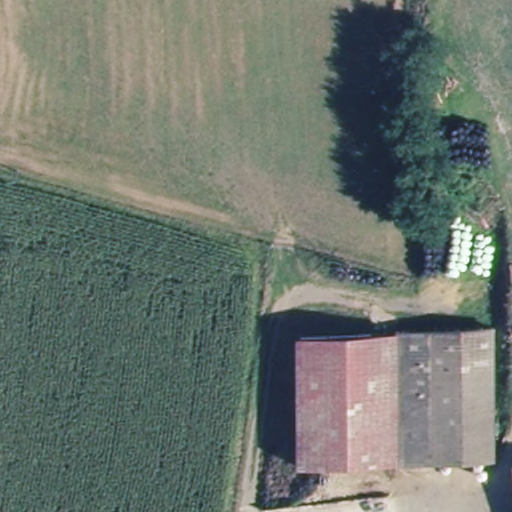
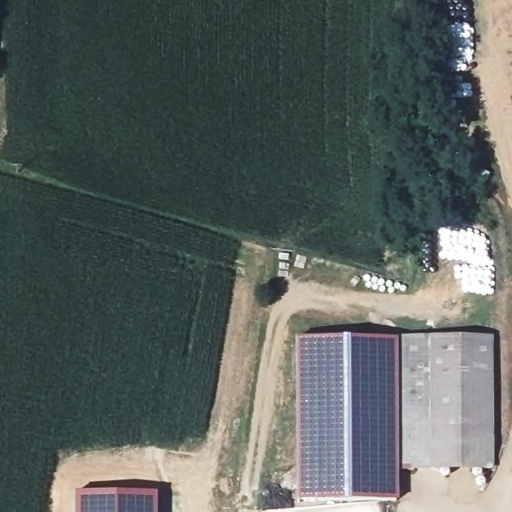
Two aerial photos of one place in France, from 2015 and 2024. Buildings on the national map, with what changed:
unchanged [(390,327),(392,343),(399,477),(308,482),(302,330),(390,327)]
unchanged [(490,339),(487,471),(483,472),(399,477),(392,343),(490,339)]
new [(157,491),(158,512),(77,512),(76,493),(157,491)]

